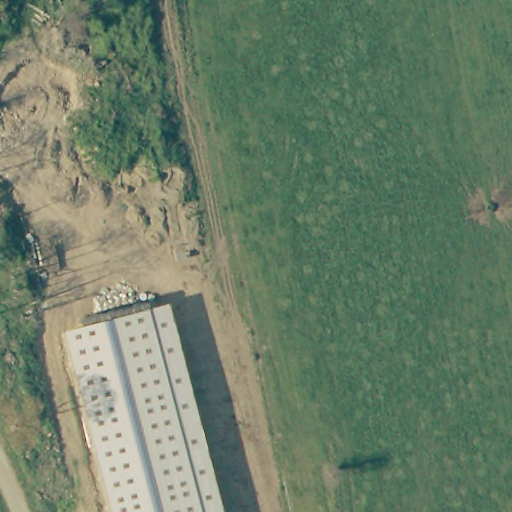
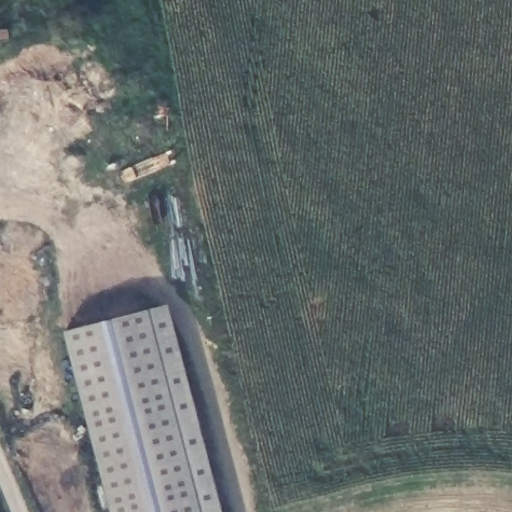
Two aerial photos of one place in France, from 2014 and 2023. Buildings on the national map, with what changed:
unchanged [(64,332),(169,305),(221,512),(110,512),(64,332)]

